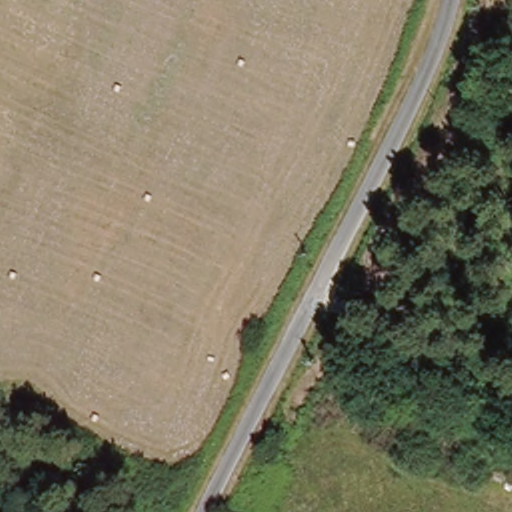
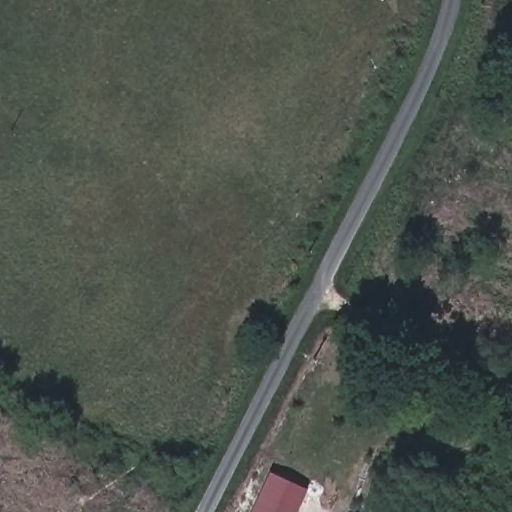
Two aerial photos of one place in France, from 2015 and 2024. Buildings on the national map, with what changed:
new [(296,512),(250,512),(269,470),(307,487),(296,512)]

